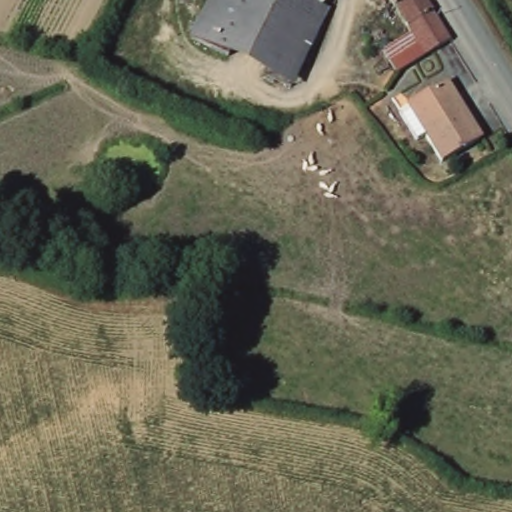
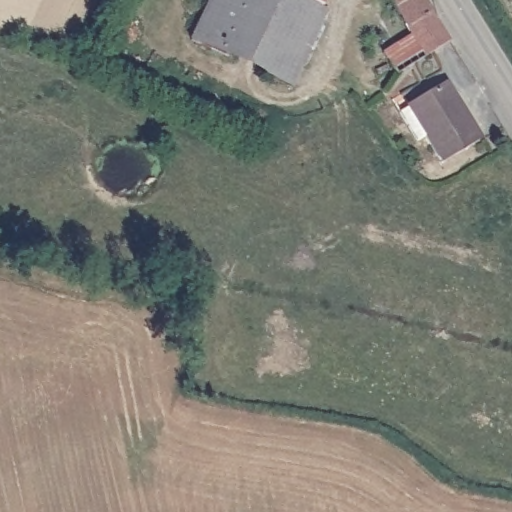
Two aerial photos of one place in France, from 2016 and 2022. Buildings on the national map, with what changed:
unchanged [(328,9),(291,85),(189,36),(205,0),(323,0),(321,5),(328,9)]
unchanged [(427,0),(450,34),(426,49),(391,0),(427,0)]
unchanged [(440,163),(413,126),(400,109),(438,82),(448,97),(477,137),(440,163)]

